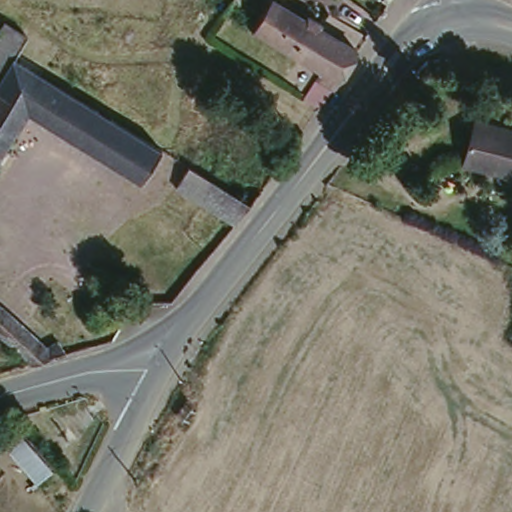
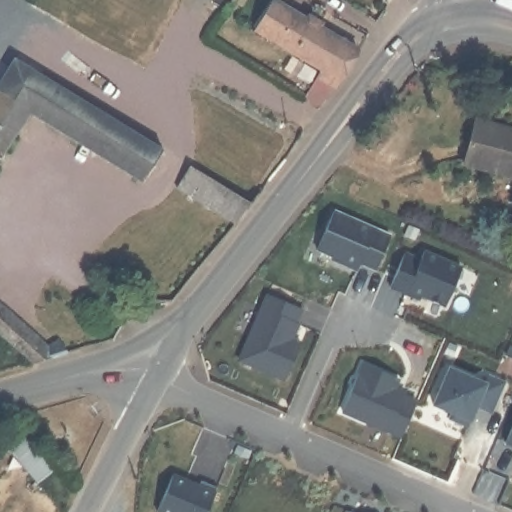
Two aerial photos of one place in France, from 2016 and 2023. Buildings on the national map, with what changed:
unchanged [(323,67),(257,27),(273,0),(279,0),(303,15),(306,12),(322,21),(319,24),(359,49),(340,77),(335,86),(319,75),(323,67)]
unchanged [(12,53),(85,95),(162,148),(142,184),(27,114),(0,160),(0,73),(12,53)]
unchanged [(512,130),(512,178),(461,165),(473,120),(512,130)]
unchanged [(249,198),(235,224),(175,190),(188,166),(249,198)]
new [(390,235),(375,272),(358,265),(355,273),(329,263),(331,259),(316,252),(333,209),(390,235)]
new [(420,260),(424,252),(460,267),(445,308),(419,297),(418,302),(389,291),(402,254),(420,260)]
demolished [(154,302),(154,291),(170,287),(176,279),(183,286),(171,304),(154,302)]
new [(304,309),(294,339),(300,342),(284,382),(236,362),(265,294),(304,309)]
unchanged [(41,345),(57,342),(67,355),(29,368),(0,340),(0,308),(41,345)]
new [(400,380),(396,389),(416,398),(399,440),(340,414),(361,365),(400,380)]
new [(479,380),(483,375),(503,384),(490,419),(474,410),(469,422),(467,426),(447,418),(449,413),(431,405),(448,368),(479,380)]
unchanged [(54,469),(38,486),(6,446),(23,435),(54,469)]
new [(206,512),(157,512),(175,473),(216,490),(206,512)]

